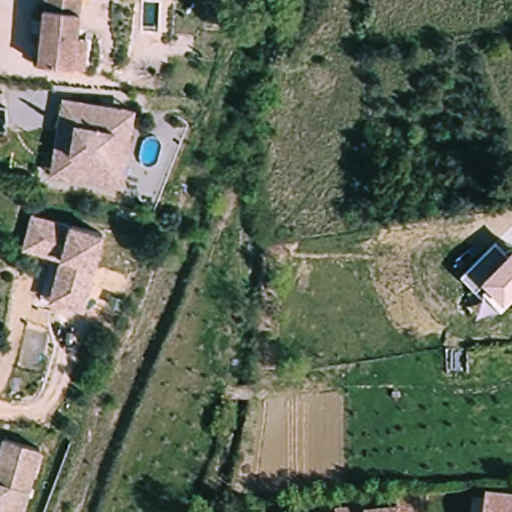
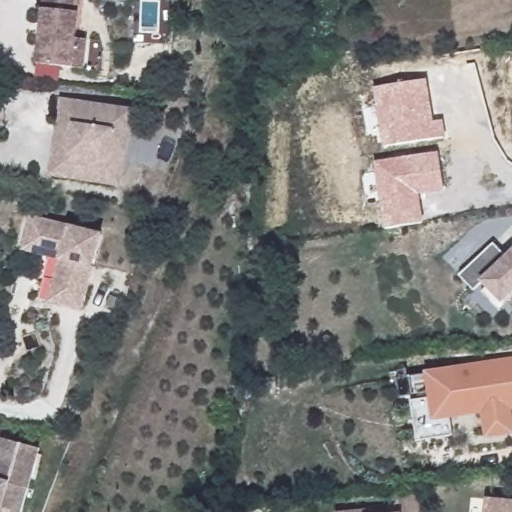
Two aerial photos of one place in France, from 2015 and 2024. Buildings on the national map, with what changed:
unchanged [(74,69),(38,65),(44,0),(81,0),(77,39),(87,40),(85,70),(74,69)]
new [(442,119),(445,136),(383,147),(374,88),(426,79),(433,120),(442,119)]
unchanged [(55,124),(59,100),(115,107),(105,183),(58,176),(48,175),(55,124)]
unchanged [(132,110),(122,185),(105,183),(115,107),(132,110)]
new [(445,189),(419,195),(423,222),(385,228),(376,162),(438,152),(445,189)]
unchanged [(27,217),(99,235),(78,311),(55,305),(65,262),(19,250),(27,217)]
unchanged [(512,300),(500,311),(482,295),(488,289),(481,283),(474,288),(458,271),(491,243),(506,255),(512,250),(512,300)]
new [(480,414),(450,418),(451,435),(417,441),(410,400),(428,396),(424,370),(512,357),(512,408),(511,408),(512,412),(512,434),(484,438),(480,414)]
unchanged [(5,438),(40,448),(22,512),(0,512),(0,454),(5,438)]
unchanged [(488,499),(512,501),(512,512),(487,512),(488,499)]
unchanged [(341,507),(372,508),(372,512),(341,512),(341,507)]

